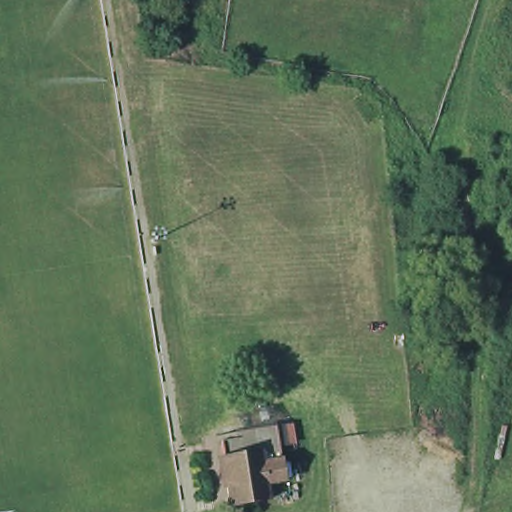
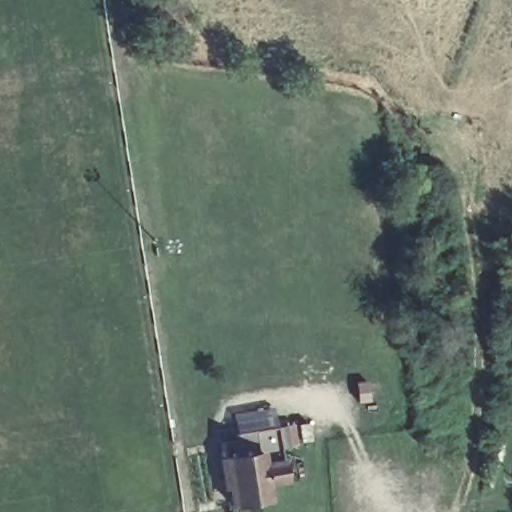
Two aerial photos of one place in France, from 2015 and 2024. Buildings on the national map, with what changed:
unchanged [(227,444),(226,438),(238,436),(247,435),(266,432),(272,465),(275,477),(276,485),(256,489),(259,506),(231,510),(223,511),(213,446),(227,444)]

